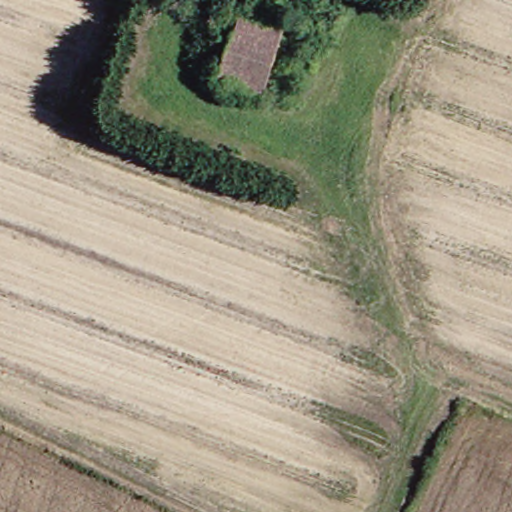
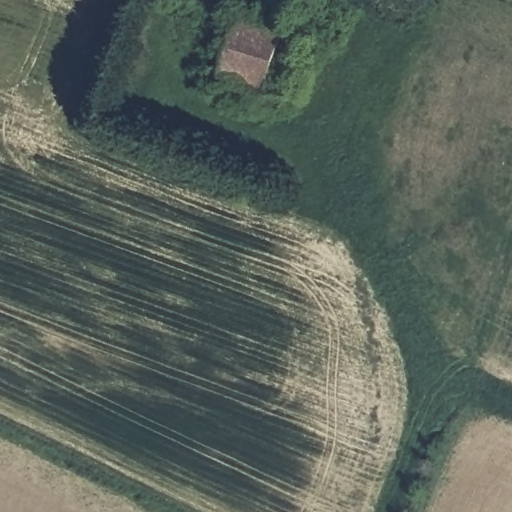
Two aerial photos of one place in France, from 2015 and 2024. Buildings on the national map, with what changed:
unchanged [(277,32),(252,96),(214,82),(224,39),(213,36),(218,14),(277,32)]

